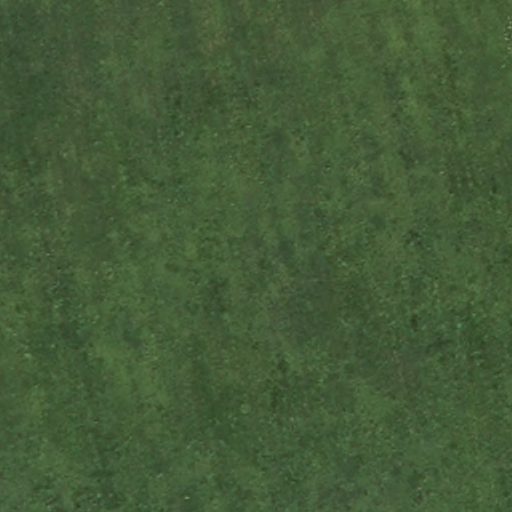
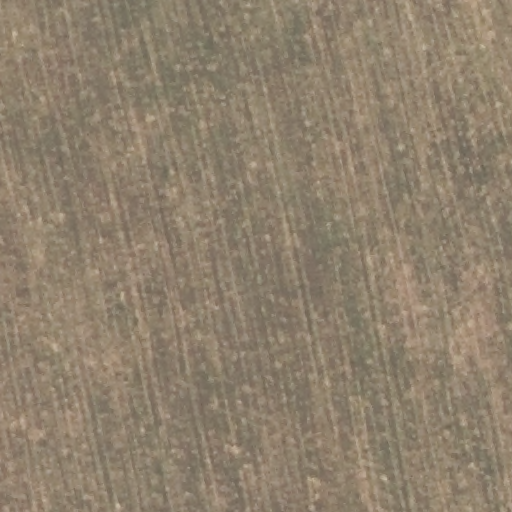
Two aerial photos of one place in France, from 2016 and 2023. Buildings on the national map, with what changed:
[]

